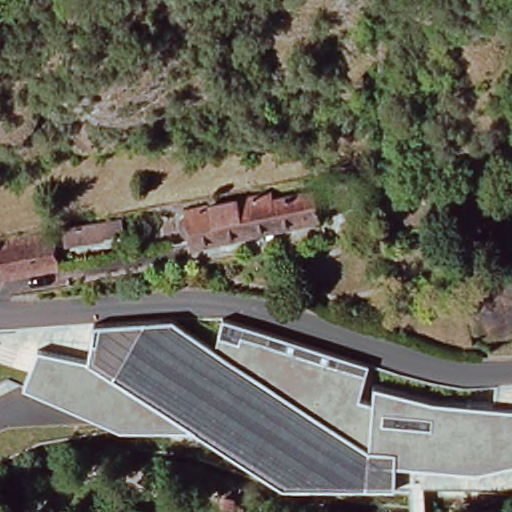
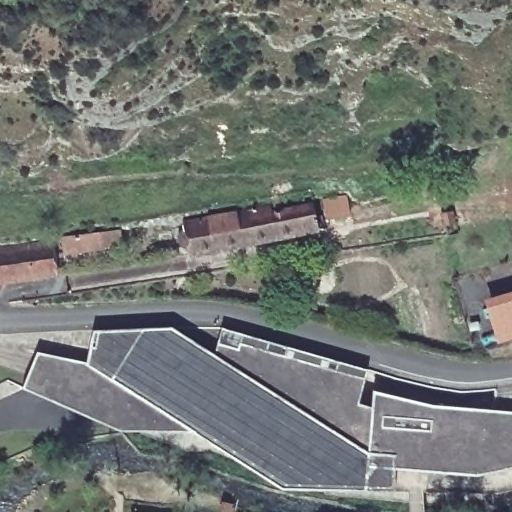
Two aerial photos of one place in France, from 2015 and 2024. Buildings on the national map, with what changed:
unchanged [(343,215),(322,219),(319,202),(340,198),(343,215)]
unchanged [(317,227),(310,228),(311,231),(182,257),(180,248),(177,247),(173,244),(172,239),(175,235),(178,233),(177,225),(263,208),(265,213),(307,206),(308,219),(315,218),(317,227)]
unchanged [(439,209),(445,208),(447,217),(442,218),(438,219),(437,210),(439,209)]
unchanged [(100,251),(60,257),(57,238),(117,230),(118,246),(100,249),(100,251)]
unchanged [(52,245),(55,277),(0,284),(0,251),(52,245)]
new [(512,338),(496,342),(482,297),(512,289),(512,338)]
unchanged [(93,331),(173,328),(212,355),(220,328),(367,369),(357,403),(370,405),(371,390),(429,407),(512,412),(512,466),(481,473),(392,465),(390,492),(280,489),(192,431),(118,431),(22,388),(35,351),(85,363),(93,331)]

